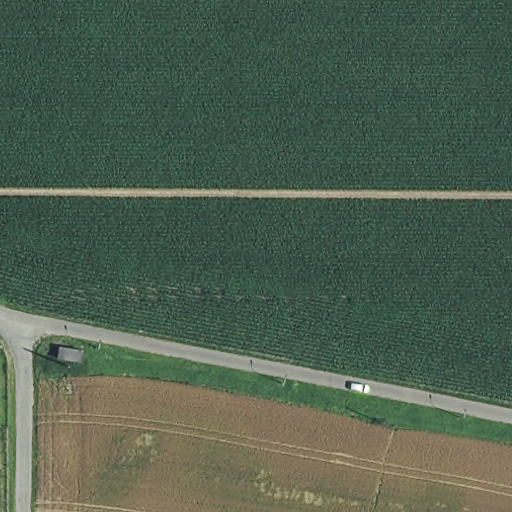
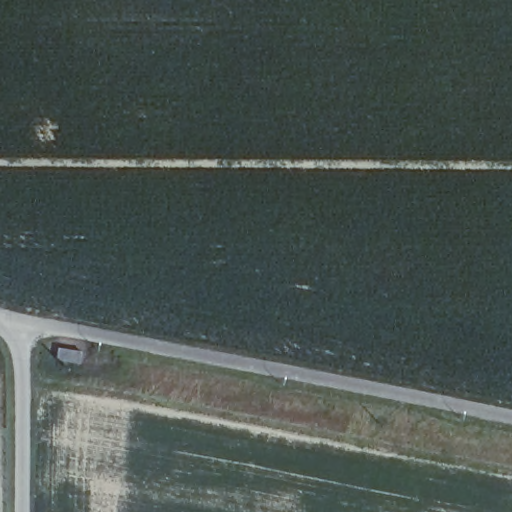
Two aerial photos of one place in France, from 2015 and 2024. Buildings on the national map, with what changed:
unchanged [(54,353),(55,367),(44,367),(44,353),(54,353)]

